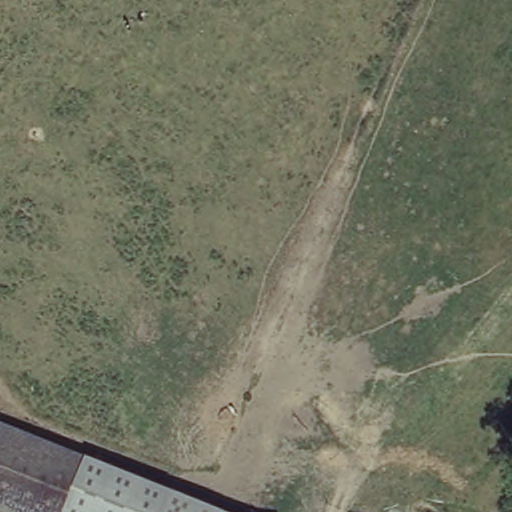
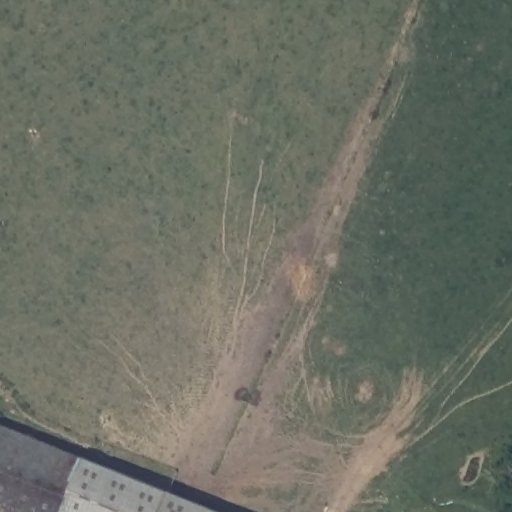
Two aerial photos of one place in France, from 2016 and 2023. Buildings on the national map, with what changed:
unchanged [(164,512),(16,512),(0,505),(0,416),(175,486),(164,512)]
unchanged [(238,512),(164,512),(175,486),(238,512)]

